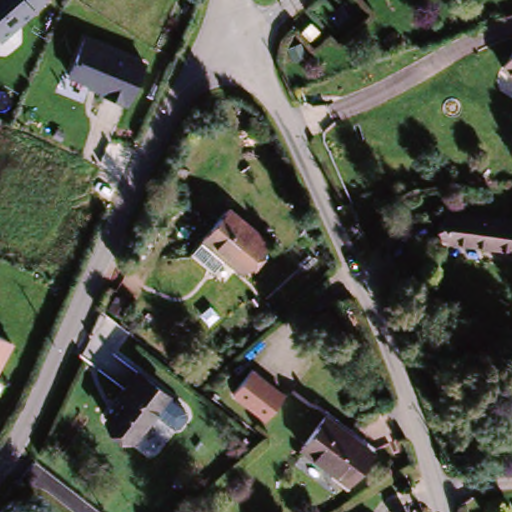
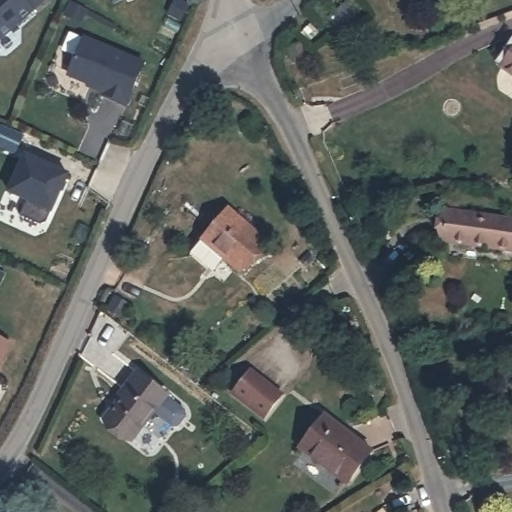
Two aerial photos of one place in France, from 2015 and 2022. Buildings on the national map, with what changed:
unchanged [(3,42),(0,40),(0,0),(49,0),(3,42)]
new [(110,5),(108,0),(119,0),(110,5)]
unchanged [(352,0),(354,0),(362,10),(345,25),(336,13),(352,0)]
unchanged [(323,24),(329,30),(321,35),(316,29),(323,24)]
unchanged [(146,62),(129,108),(64,77),(83,35),(146,62)]
unchanged [(306,38),(310,51),(296,56),(291,42),(306,38)]
unchanged [(512,49),(512,69),(503,62),(512,49)]
demolished [(61,166),(51,189),(59,192),(40,235),(20,226),(14,239),(0,232),(0,212),(5,202),(11,205),(33,154),(61,166)]
new [(23,216),(30,200),(11,191),(28,155),(71,175),(49,222),(43,225),(23,216)]
unchanged [(194,245),(231,205),(269,243),(241,275),(194,245)]
unchanged [(444,207),(512,219),(512,249),(439,237),(444,207)]
unchanged [(16,344),(0,375),(0,335),(16,344)]
unchanged [(285,393),(266,421),(233,393),(253,367),(285,393)]
unchanged [(128,398),(122,392),(138,375),(169,401),(131,446),(105,425),(128,398)]
unchanged [(326,419),(373,457),(350,485),(302,448),(326,419)]

